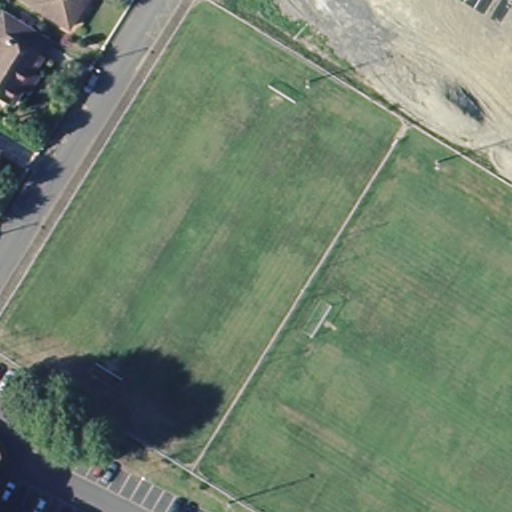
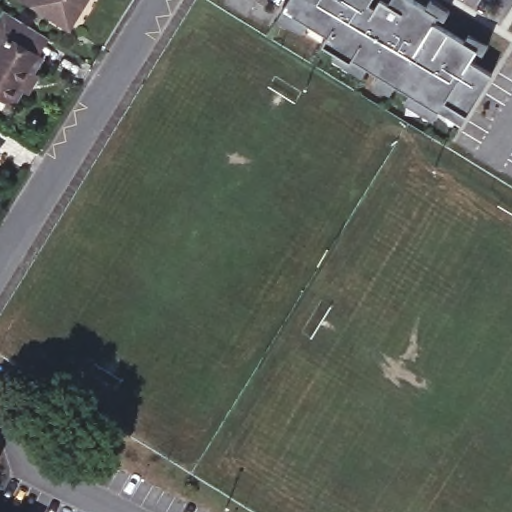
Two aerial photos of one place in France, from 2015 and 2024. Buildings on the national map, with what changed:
unchanged [(75,26),(29,0),(89,0),(75,26)]
new [(439,106),(437,108),(431,119),(404,99),(410,91),(395,82),(390,90),(374,81),(379,72),(367,65),(362,73),(332,59),(337,50),(322,41),(327,32),(307,21),(302,29),(278,14),(283,6),(287,0),(418,0),(425,4),(427,0),(439,0),(448,8),(443,16),(437,12),(433,19),(463,37),(468,30),(486,42),(480,52),(474,49),(469,56),(491,70),(466,111),(461,120),(439,106)]
unchanged [(31,96),(24,92),(14,108),(0,99),(0,35),(0,21),(5,13),(49,40),(55,44),(43,62),(36,74),(42,77),(31,96)]
unchanged [(5,150),(0,158),(0,147),(5,150)]
unchanged [(6,455),(0,467),(0,438),(6,455)]

